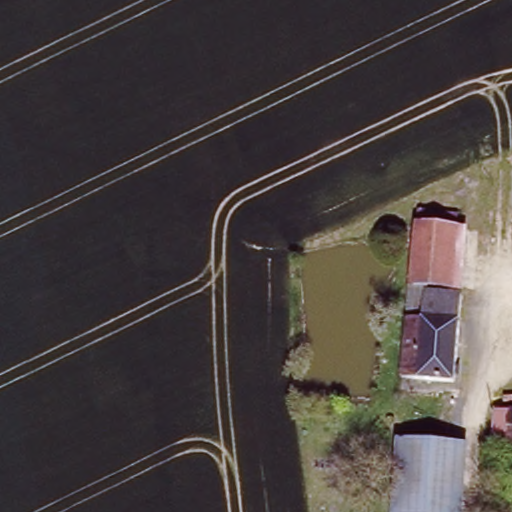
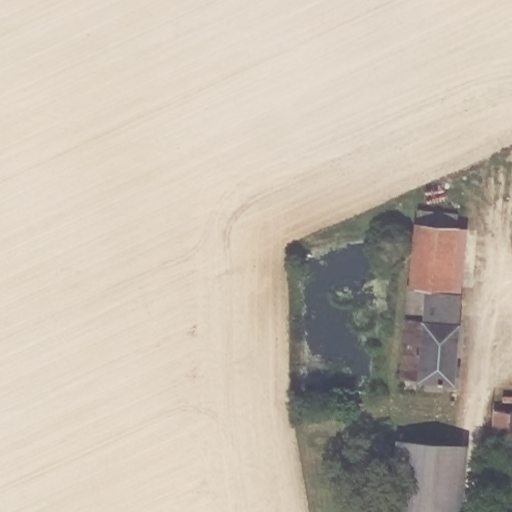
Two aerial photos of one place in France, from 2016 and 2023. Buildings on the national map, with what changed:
unchanged [(453,224),(448,286),(410,283),(415,222),(453,224)]
unchanged [(400,374),(405,314),(423,315),(425,290),(457,292),(456,317),(451,378),(400,374)]
unchanged [(495,408),(512,409),(512,444),(492,443),(495,408)]
unchanged [(395,440),(445,444),(465,447),(460,512),(389,512),(395,440)]

